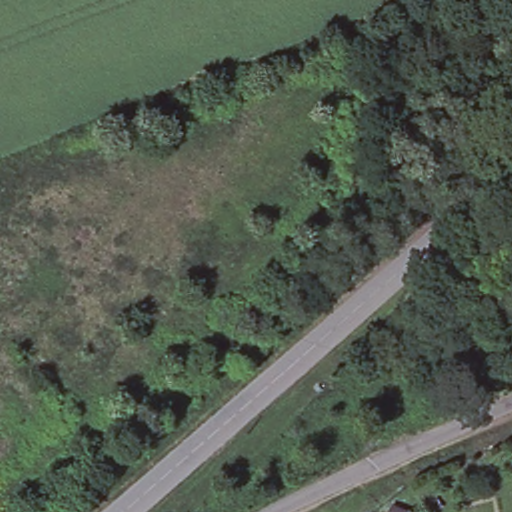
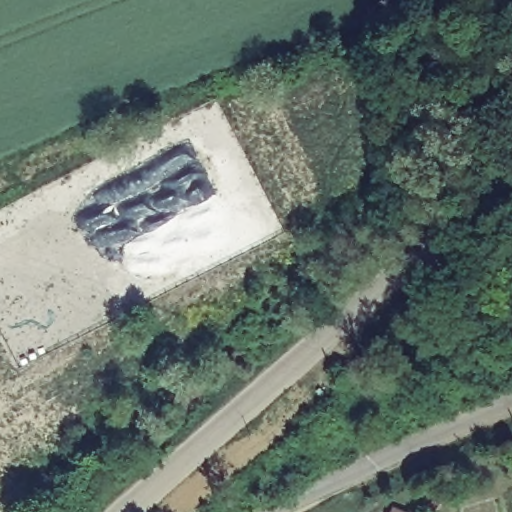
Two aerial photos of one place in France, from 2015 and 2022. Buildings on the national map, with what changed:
unchanged [(409,512),(391,512),(394,505),(409,512)]

